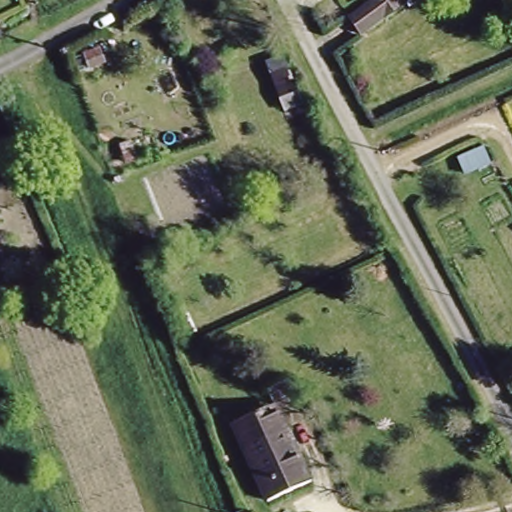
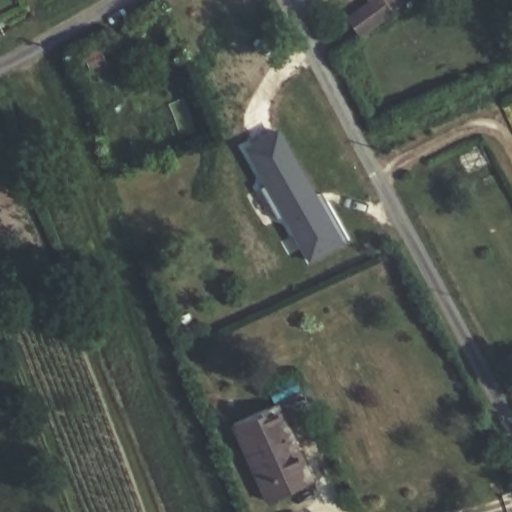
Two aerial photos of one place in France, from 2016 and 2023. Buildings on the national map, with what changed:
unchanged [(337,11),(355,0),(390,0),(392,4),(348,31),(337,11)]
unchanged [(102,80),(97,66),(114,59),(120,73),(102,80)]
demolished [(104,135),(144,120),(157,154),(115,168),(104,135)]
new [(306,262),(298,248),(285,255),(277,240),(290,234),(280,216),(275,219),(260,227),(243,195),(258,188),(264,185),(243,148),(275,130),(295,166),(297,164),(314,195),(320,192),(346,237),(306,262)]
unchanged [(274,407),(295,452),(311,485),(269,504),(231,425),(263,411),(274,407)]

